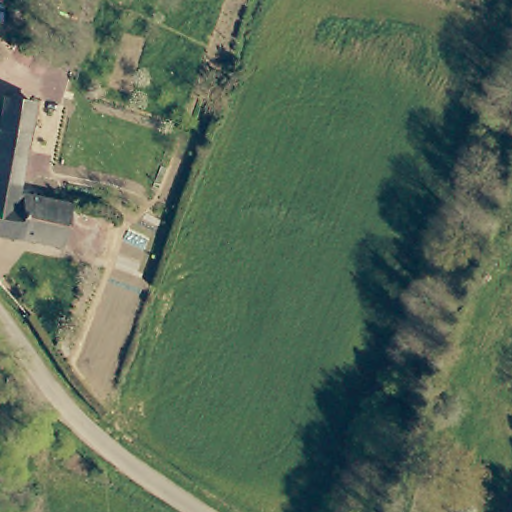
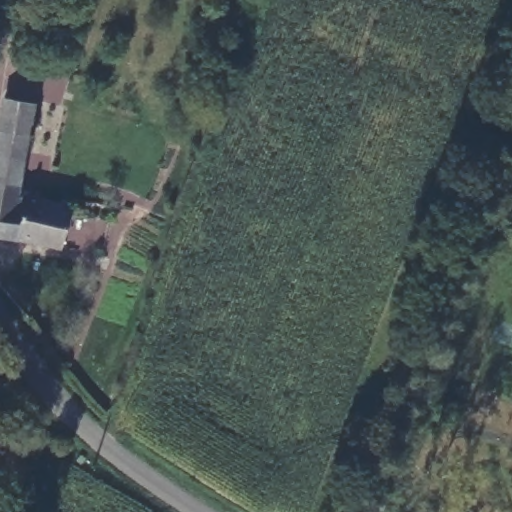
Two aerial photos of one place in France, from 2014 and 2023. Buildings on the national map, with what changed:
unchanged [(0,238),(0,116),(2,103),(29,112),(15,203),(48,209),(55,211),(63,212),(65,212),(59,249),(0,238)]

